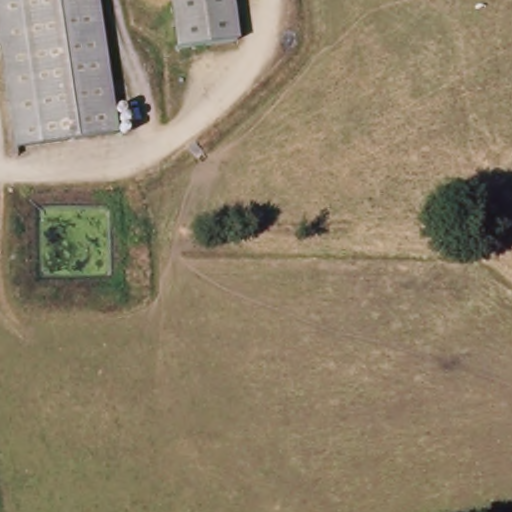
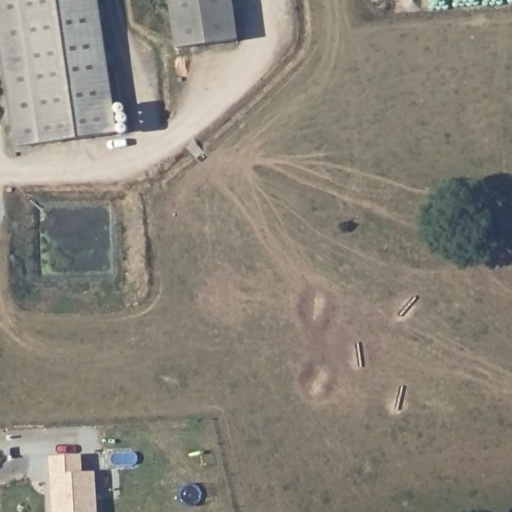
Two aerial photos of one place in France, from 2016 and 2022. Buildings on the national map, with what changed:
unchanged [(115,134),(16,148),(0,42),(0,0),(97,0),(117,133),(115,134)]
unchanged [(179,49),(171,0),(232,0),(238,41),(179,49)]
new [(98,512),(52,512),(49,457),(82,455),(84,472),(96,472),(98,512)]

